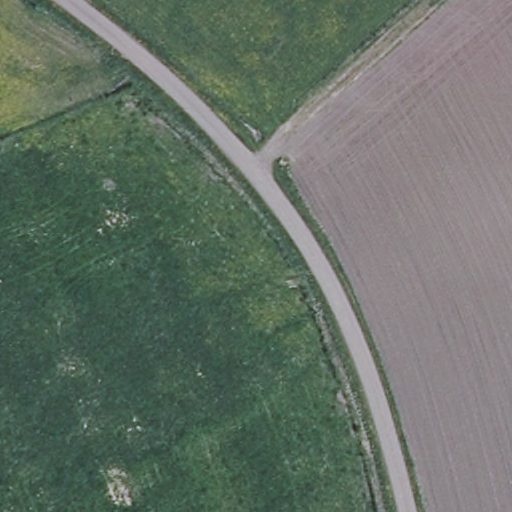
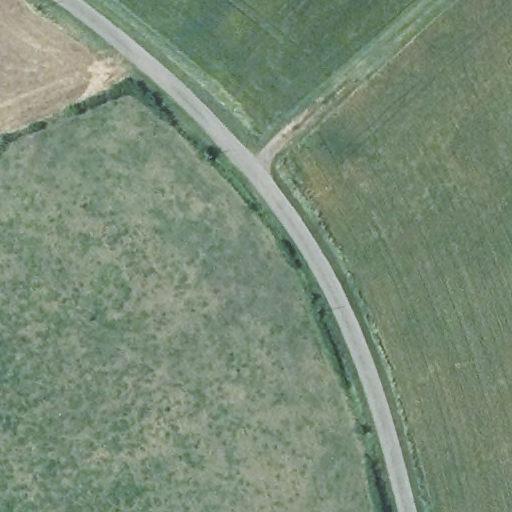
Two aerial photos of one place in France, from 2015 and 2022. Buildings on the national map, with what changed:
[]

